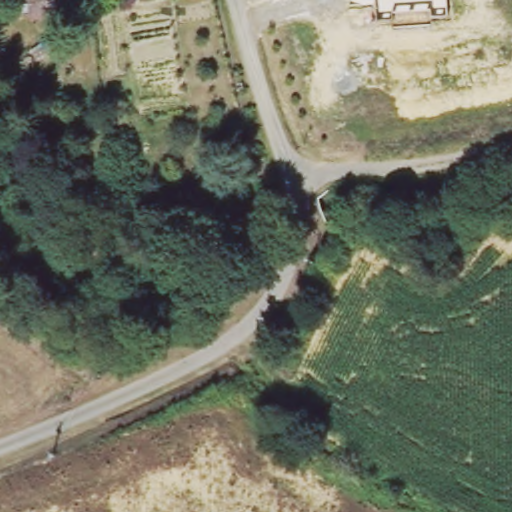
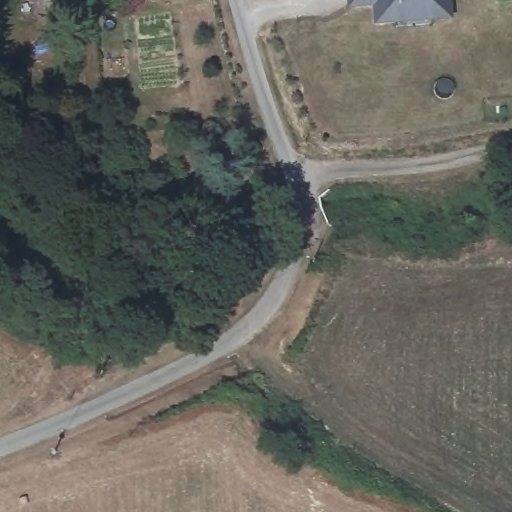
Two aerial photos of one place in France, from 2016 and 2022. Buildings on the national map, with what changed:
new [(451,0),(452,20),(374,25),(373,7),(348,8),(347,0),(451,0)]

